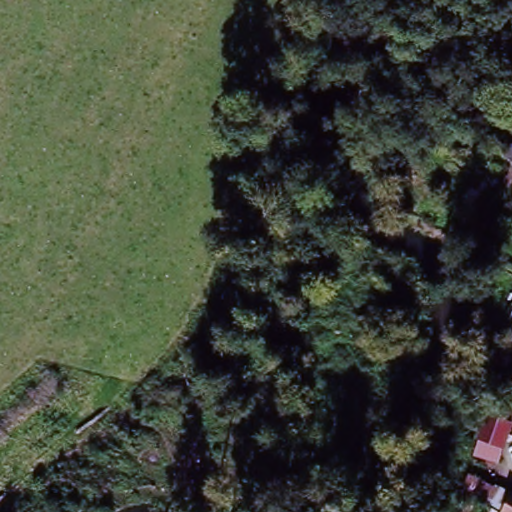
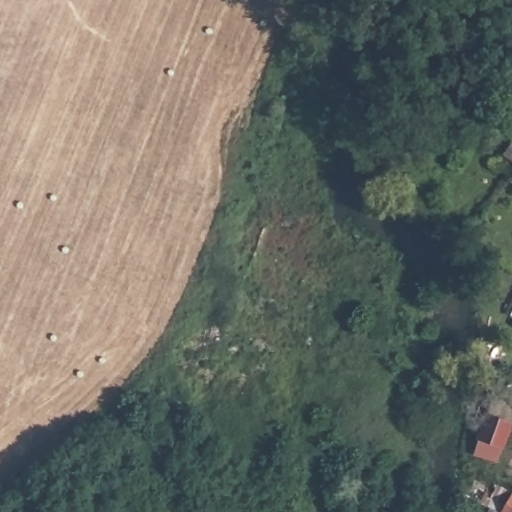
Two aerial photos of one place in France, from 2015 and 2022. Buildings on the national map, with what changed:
unchanged [(480,455),(494,420),(512,427),(498,464),(480,455)]
unchanged [(512,492),(512,512),(507,512),(500,508),(512,492)]

